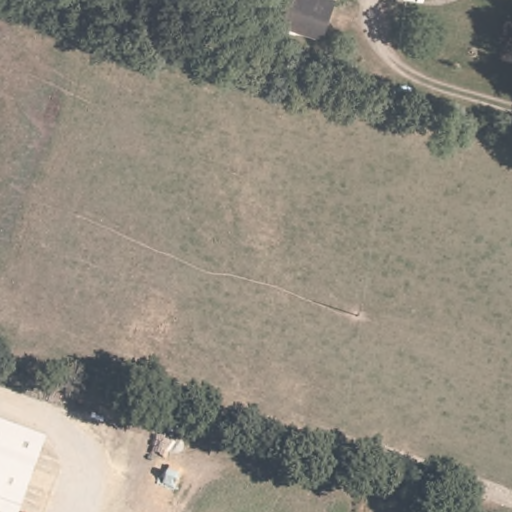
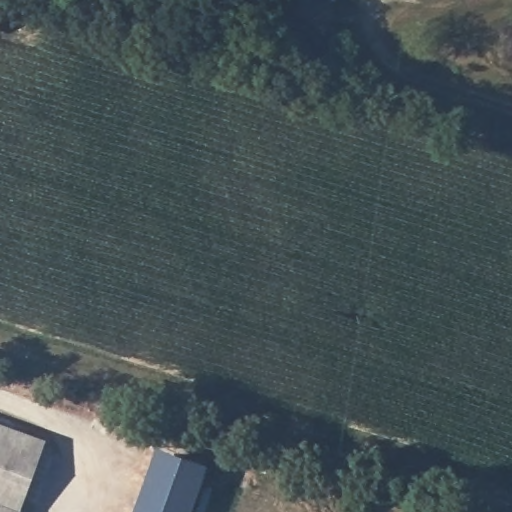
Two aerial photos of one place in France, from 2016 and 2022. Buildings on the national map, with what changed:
unchanged [(289,26),(292,20),(274,14),(279,0),(346,0),(333,41),(289,26)]
unchanged [(18,512),(0,512),(0,420),(46,437),(18,512)]
new [(154,445),(207,463),(189,512),(130,512),(154,445)]

